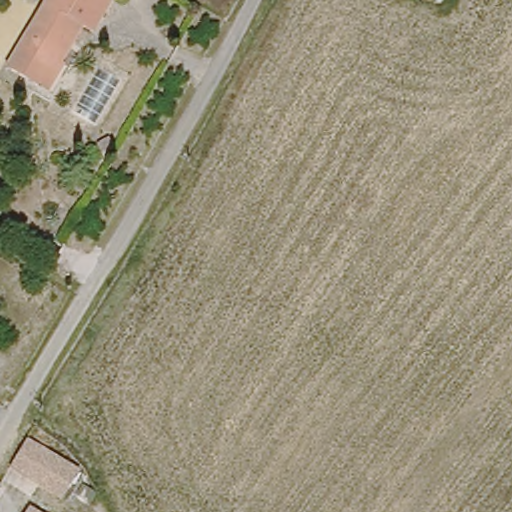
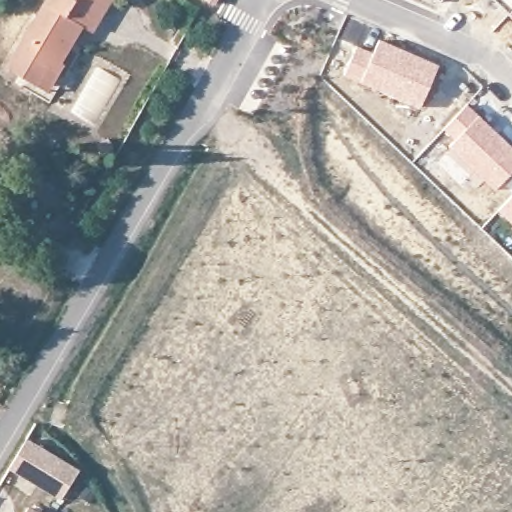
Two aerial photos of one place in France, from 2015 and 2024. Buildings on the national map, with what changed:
unchanged [(45,91),(33,83),(5,67),(43,0),(106,0),(90,30),(79,25),(66,49),(58,61),(60,65),(45,91)]
new [(495,0),(512,0),(512,15),(495,0)]
new [(419,114),(343,81),(355,53),(372,59),(378,46),(438,72),(419,114)]
new [(512,148),(512,176),(497,192),(451,149),(457,142),(446,131),(468,107),(512,148)]
new [(512,198),(512,222),(500,211),(512,198)]
unchanged [(71,498),(11,467),(29,434),(85,466),(71,498)]
unchanged [(40,512),(23,512),(28,505),(40,512)]

